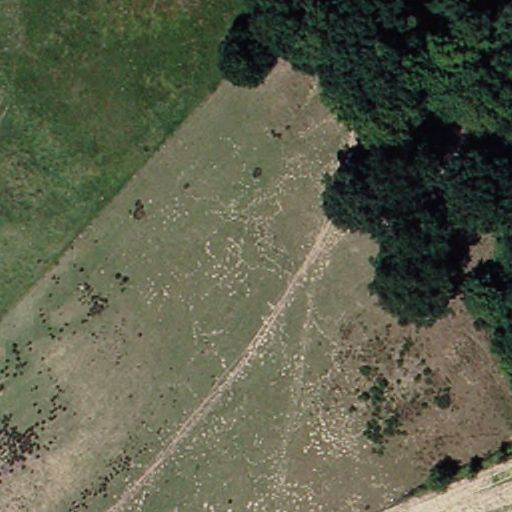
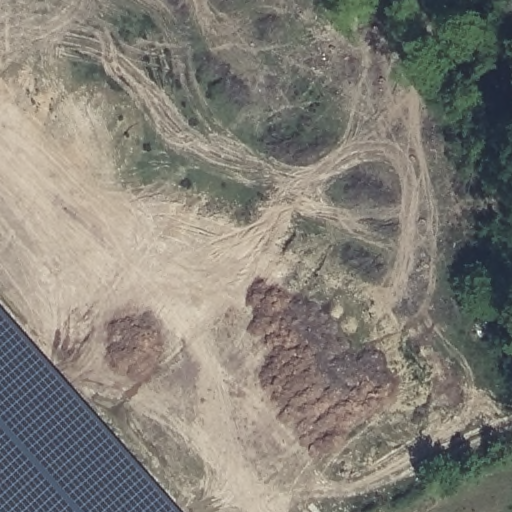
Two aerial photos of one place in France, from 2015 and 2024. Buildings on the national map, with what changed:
new [(180,512),(0,512),(0,307),(180,512)]

